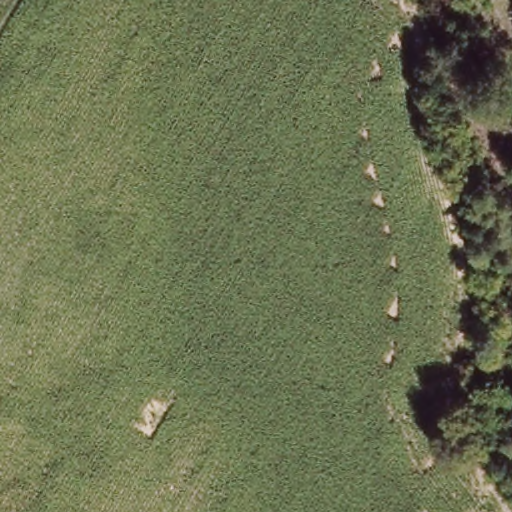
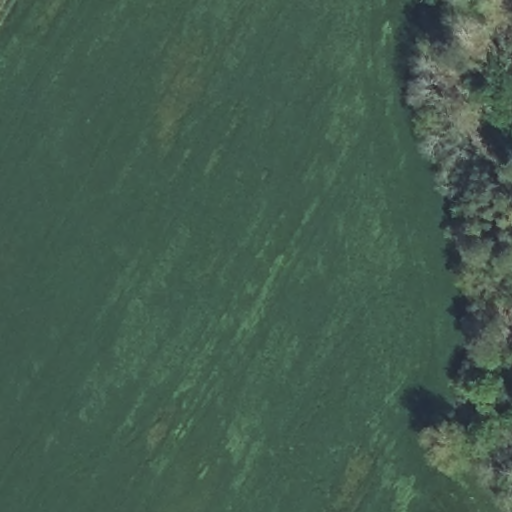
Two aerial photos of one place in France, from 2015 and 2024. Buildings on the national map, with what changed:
unchanged [(499,81),(512,82),(512,93),(499,93),(499,81)]

